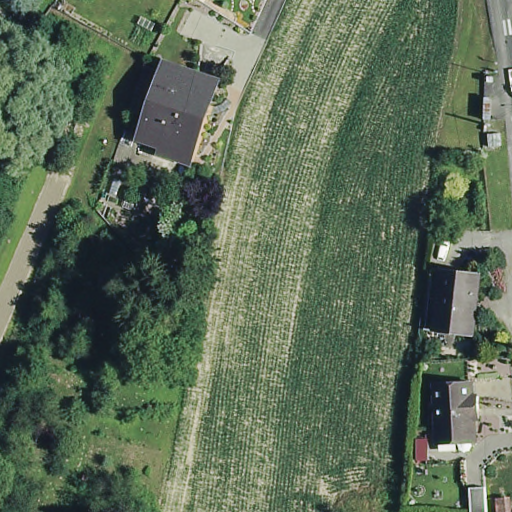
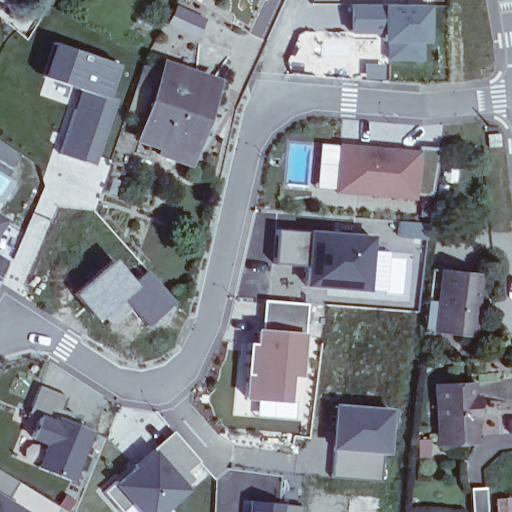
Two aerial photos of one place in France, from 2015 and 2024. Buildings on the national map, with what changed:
new [(429,62),(389,62),(389,33),(352,33),(351,5),(433,5),(429,62)]
unchanged [(177,7),(203,19),(195,36),(169,24),(177,7)]
new [(128,62),(117,100),(124,103),(101,170),(58,154),(79,93),(41,80),(56,36),(128,62)]
unchanged [(164,58),(215,73),(190,147),(140,132),(164,58)]
unchanged [(495,133),(482,134),(482,121),(494,121),(495,133)]
new [(422,153),(418,199),(318,189),(322,145),(422,153)]
new [(10,218),(0,235),(0,212),(10,218)]
new [(275,227),(306,228),(303,265),(272,262),(275,227)]
new [(303,265),(306,228),(369,233),(366,289),(301,285),(303,265)]
new [(111,255),(132,280),(147,268),(175,301),(146,326),(128,309),(109,325),(102,317),(96,322),(70,290),(111,255)]
demolished [(120,304),(92,299),(98,263),(126,267),(120,304)]
unchanged [(440,267),(477,271),(470,332),(433,327),(440,267)]
new [(304,378),(295,378),(293,403),(246,401),(250,344),(260,344),(259,330),(264,332),(265,302),(308,305),(304,378)]
unchanged [(469,411),(469,431),(432,432),(430,378),(467,375),(467,389),(473,388),(473,401),(474,411),(469,411)]
new [(69,398),(66,408),(76,413),(74,424),(96,433),(76,482),(12,454),(42,386),(69,398)]
new [(331,401),(390,406),(386,454),(383,454),(332,451),(328,450),(331,401)]
new [(190,472),(197,482),(162,512),(122,512),(106,493),(175,433),(200,462),(190,472)]
new [(332,451),(383,454),(380,480),(330,476),(332,451)]
new [(10,499),(27,511),(26,512),(0,512),(0,473),(18,484),(10,499)]
new [(486,512),(471,512),(470,488),(485,487),(486,512)]
unchanged [(501,497),(501,512),(493,512),(493,497),(501,497)]
new [(301,512),(250,512),(251,502),(302,507),(301,512)]

